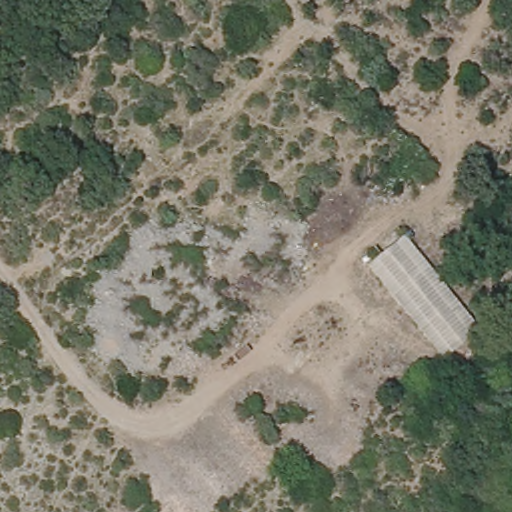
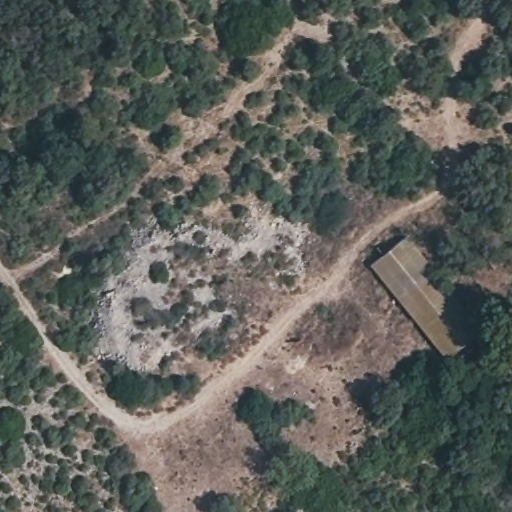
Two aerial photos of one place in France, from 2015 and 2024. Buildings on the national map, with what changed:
unchanged [(481,332),(445,362),(370,269),(406,239),(481,332)]

